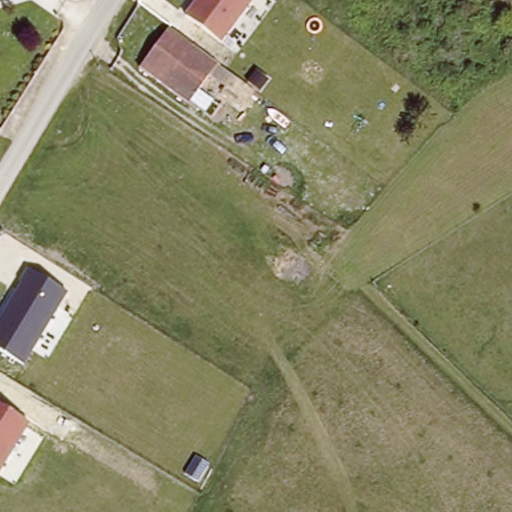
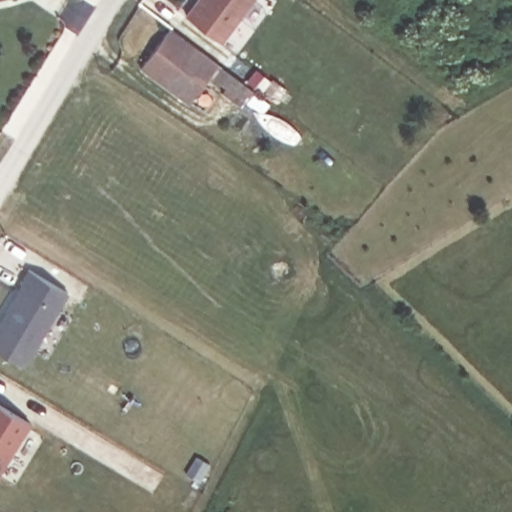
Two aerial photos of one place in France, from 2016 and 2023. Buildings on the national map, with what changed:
unchanged [(254,0),(222,44),(186,17),(198,0),(254,0)]
unchanged [(140,69),(167,28),(219,64),(240,79),(224,102),(202,86),(189,105),(140,69)]
unchanged [(68,293),(25,366),(0,351),(0,318),(27,269),(68,293)]
unchanged [(0,472),(0,404),(31,423),(0,472)]

